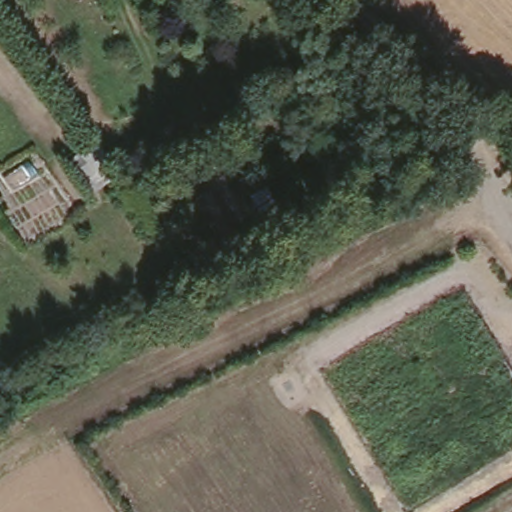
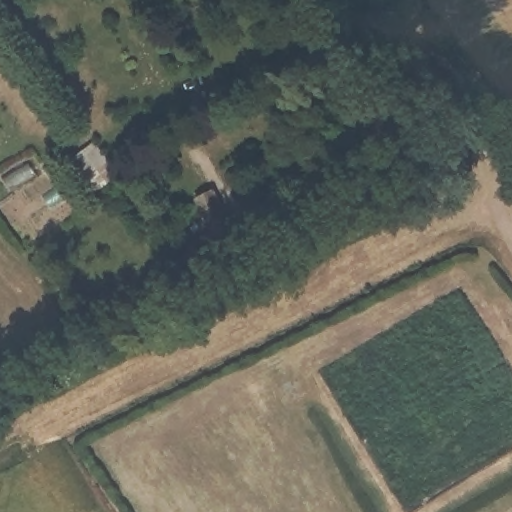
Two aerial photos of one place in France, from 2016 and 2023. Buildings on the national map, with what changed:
unchanged [(219,189),(242,236),(221,246),(196,198),(219,189)]

